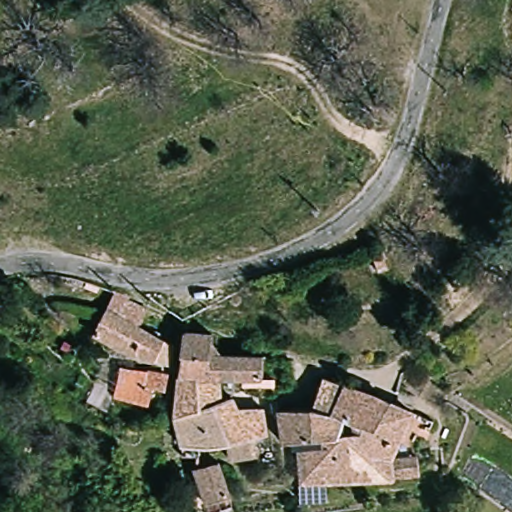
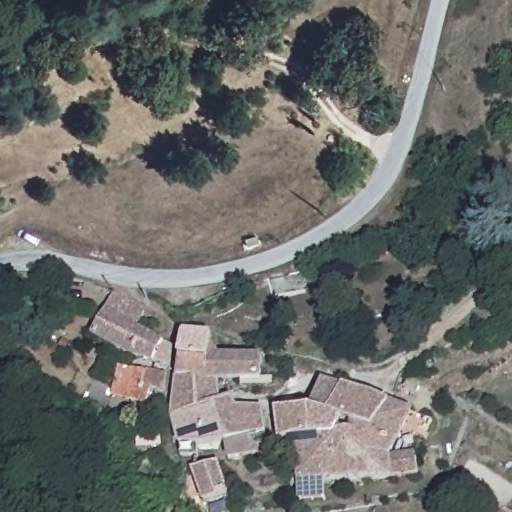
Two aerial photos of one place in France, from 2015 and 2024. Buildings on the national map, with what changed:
unchanged [(103,308),(108,297),(142,310),(138,322),(174,336),(171,368),(134,356),(91,335),(98,319),(103,308)]
unchanged [(183,335),(215,340),(212,355),(284,361),(284,386),(207,377),(185,373),(179,372),(183,335)]
unchanged [(115,396),(121,380),(125,365),(149,372),(167,379),(163,392),(152,390),(146,407),(115,396)]
unchanged [(275,460),(257,465),(255,456),(224,458),(220,447),(208,447),(178,448),(173,425),(179,372),(185,373),(207,377),(204,400),(242,397),(245,413),(245,415),(262,412),(262,435),(263,448),(272,447),(275,460)]
unchanged [(426,471),(400,473),(307,485),(299,450),(283,450),(282,412),(314,411),(323,374),(409,401),(415,400),(414,407),(427,412),(424,426),(407,422),(401,445),(400,448),(427,447),(426,471)]
unchanged [(206,500),(198,465),(223,461),(228,497),(206,500)]

